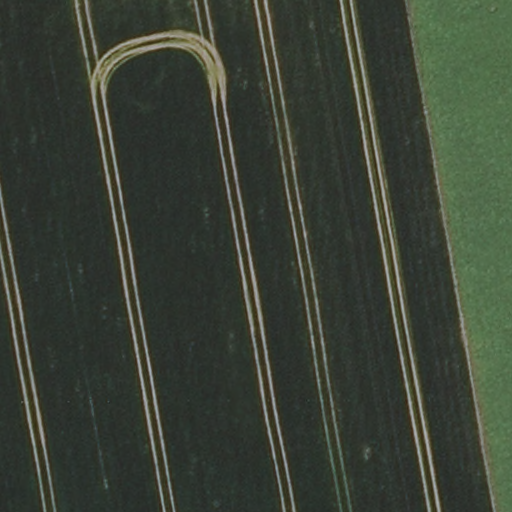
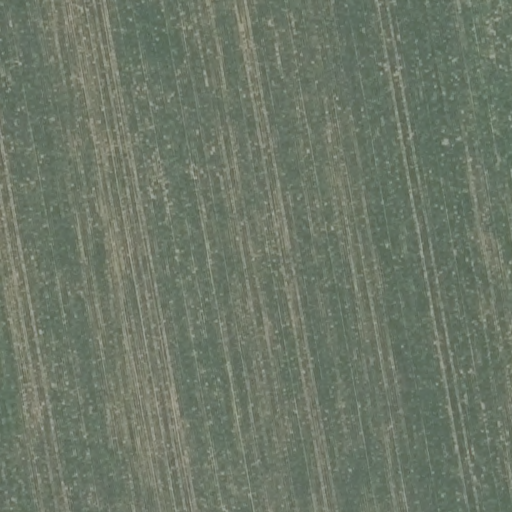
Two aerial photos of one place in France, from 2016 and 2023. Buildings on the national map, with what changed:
[]

